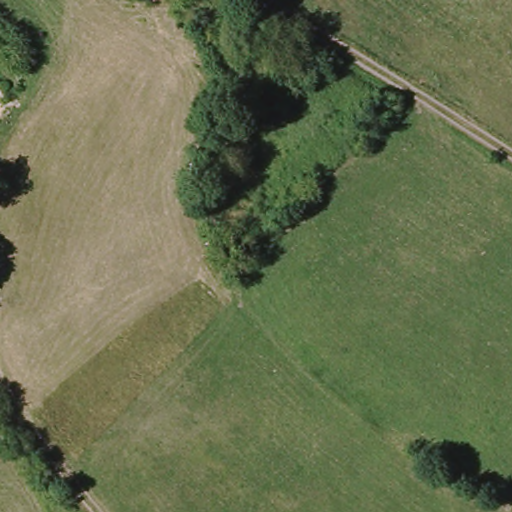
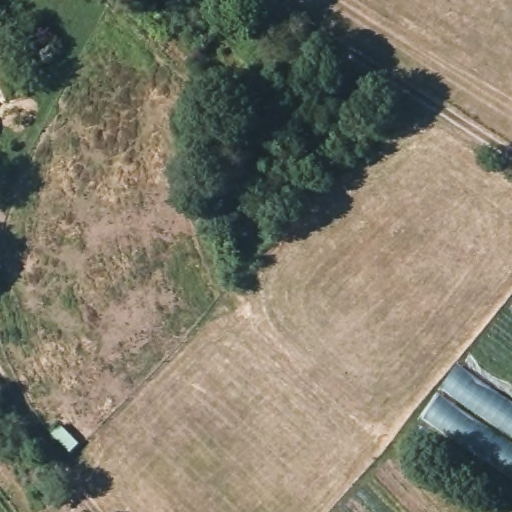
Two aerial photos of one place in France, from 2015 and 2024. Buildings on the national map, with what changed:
new [(457,364),(512,402),(512,481),(421,418),(457,364)]

